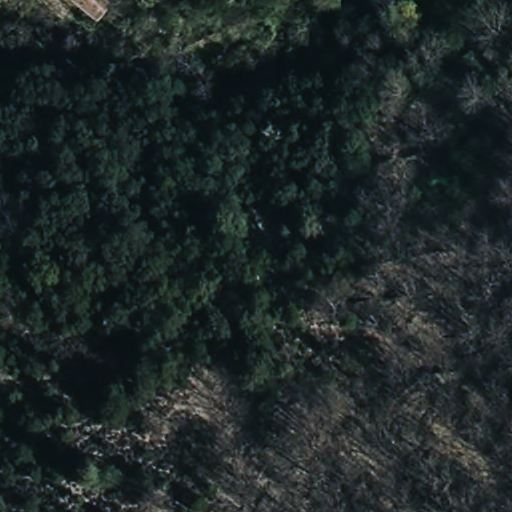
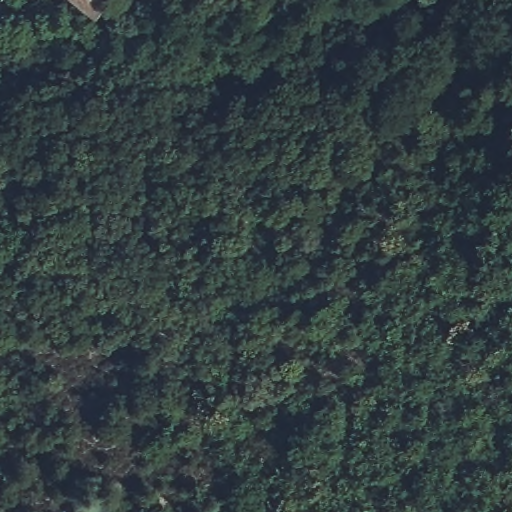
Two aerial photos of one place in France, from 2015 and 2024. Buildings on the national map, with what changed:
unchanged [(82,0),(107,0),(119,19),(98,19),(82,0)]

